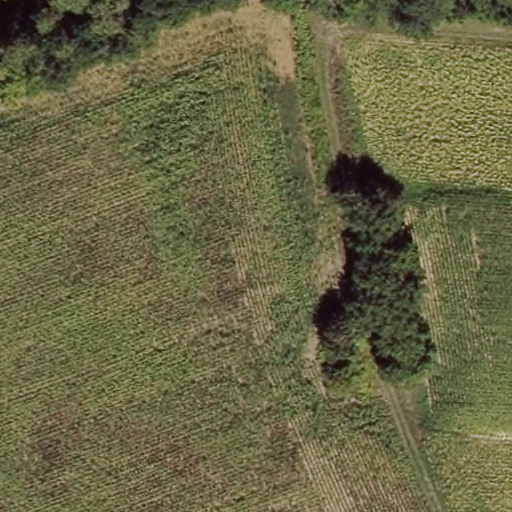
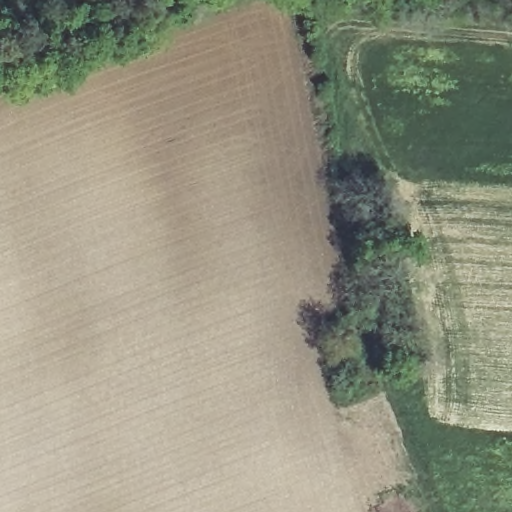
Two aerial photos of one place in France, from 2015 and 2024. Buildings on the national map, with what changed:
unchanged [(343,364),(354,360),(365,383),(352,388),(343,364)]

